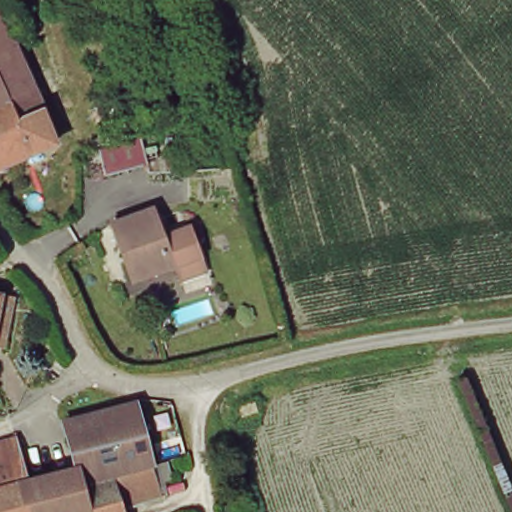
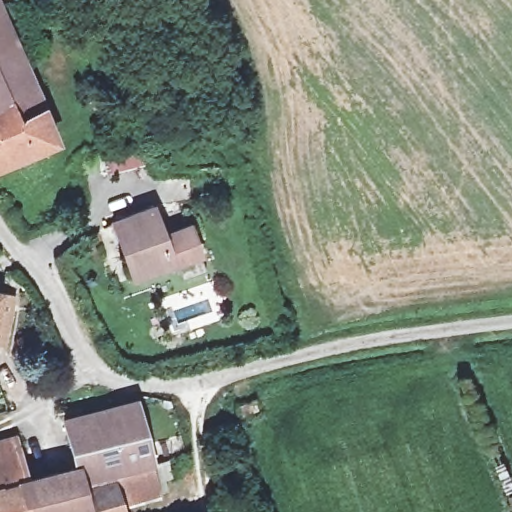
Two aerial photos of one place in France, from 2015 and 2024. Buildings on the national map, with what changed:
unchanged [(17,33),(12,41),(13,42),(36,105),(48,139),(0,160),(0,0),(3,0),(17,33)]
unchanged [(108,168),(103,142),(142,135),(146,140),(149,160),(108,168)]
unchanged [(184,275),(178,261),(135,278),(112,221),(153,205),(165,235),(190,225),(201,251),(207,266),(184,275)]
unchanged [(0,305),(0,293),(1,293),(0,305)]
unchanged [(458,371),(512,503),(512,512),(504,512),(448,375),(458,371)]
unchanged [(68,415),(138,397),(156,456),(153,457),(87,476),(83,462),(68,415)]
unchanged [(1,430),(16,426),(19,436),(23,449),(25,453),(31,476),(79,463),(83,462),(87,476),(88,481),(90,486),(117,478),(115,473),(138,466),(155,462),(161,482),(121,493),(127,512),(0,512),(0,431),(1,430)]

